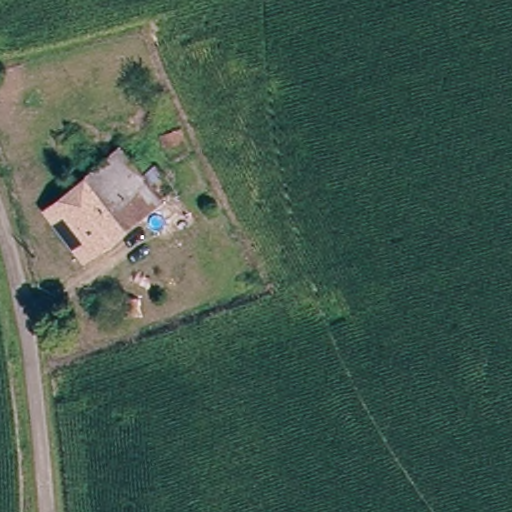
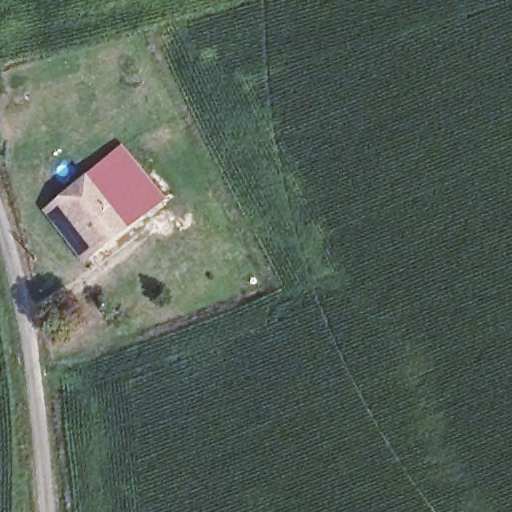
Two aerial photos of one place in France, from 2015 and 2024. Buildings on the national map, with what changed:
unchanged [(116,147),(141,175),(155,166),(173,188),(98,242),(60,195),(116,147)]
unchanged [(45,208),(60,195),(98,242),(81,254),(45,208)]

